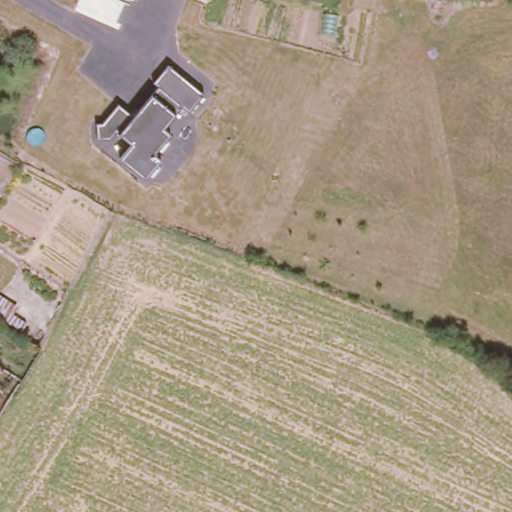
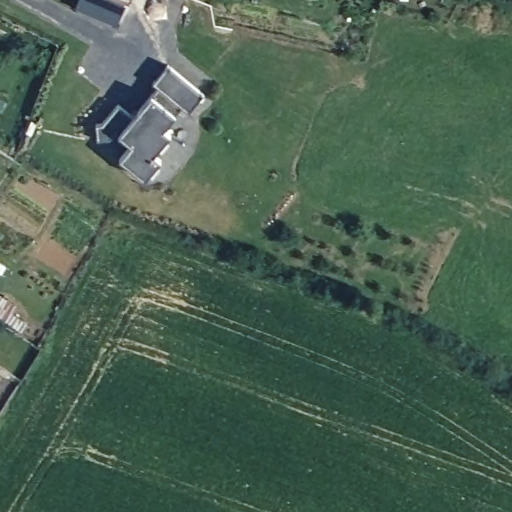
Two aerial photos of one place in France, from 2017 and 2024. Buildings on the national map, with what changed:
unchanged [(120,156),(131,142),(116,130),(110,137),(97,139),(96,122),(102,121),(118,102),(133,115),(158,85),(153,81),(168,62),(170,64),(204,92),(189,110),(182,105),(164,126),(171,132),(155,152),(161,158),(145,177),(131,166),(120,156)]

